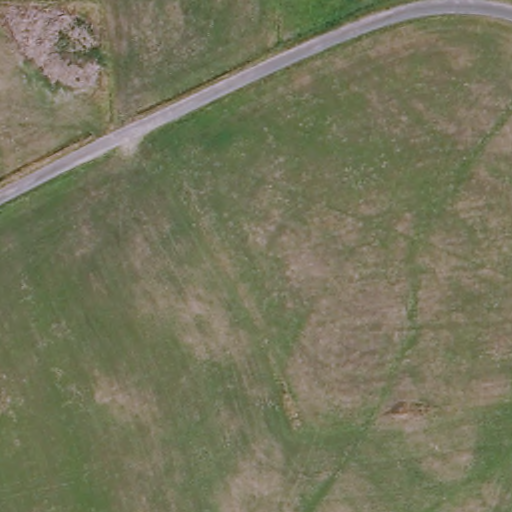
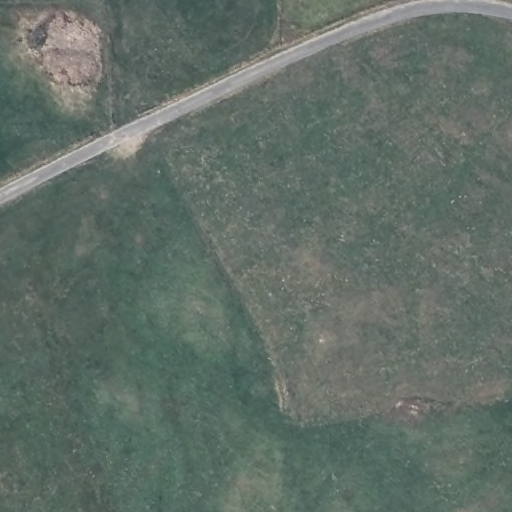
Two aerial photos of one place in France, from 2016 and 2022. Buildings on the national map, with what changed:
[]

